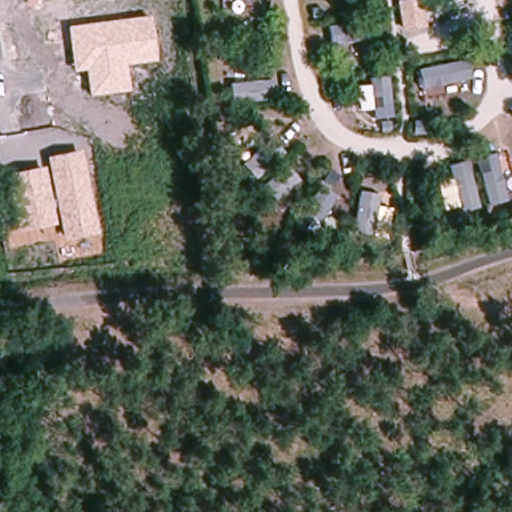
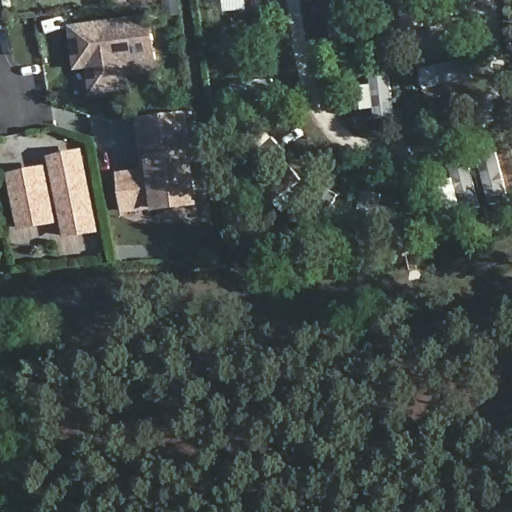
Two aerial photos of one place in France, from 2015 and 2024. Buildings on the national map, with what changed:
unchanged [(36,0),(44,0),(36,1),(36,0)]
unchanged [(426,0),(430,30),(402,34),(397,1),(406,0),(426,0)]
unchanged [(156,60),(125,65),(128,91),(88,96),(84,69),(73,71),(67,26),(149,16),(156,60)]
new [(192,151),(198,205),(153,211),(121,214),(116,173),(142,170),(136,119),(187,111),(192,151)]
unchanged [(98,233),(60,239),(58,222),(17,232),(7,176),(46,166),(44,157),(78,150),(98,233)]

